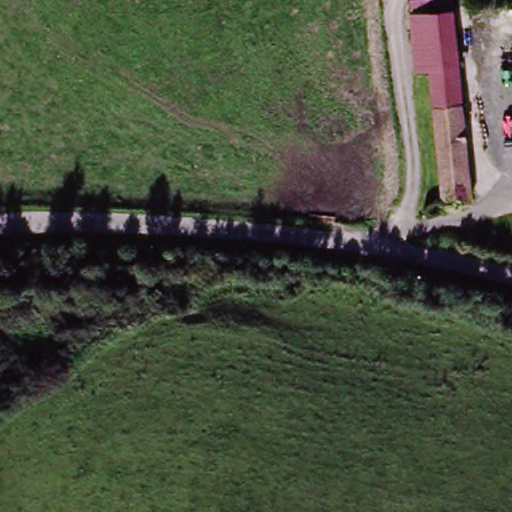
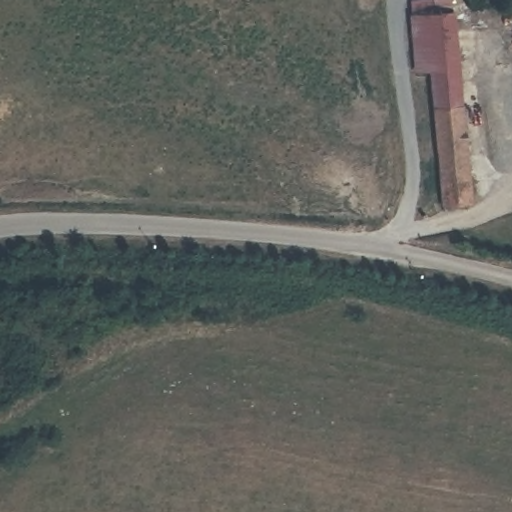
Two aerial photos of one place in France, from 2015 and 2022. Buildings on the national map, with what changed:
unchanged [(458,62),(415,65),(412,14),(411,0),(454,0),(455,11),(458,62)]
unchanged [(459,62),(468,204),(440,206),(433,108),(419,107),(415,65),(458,62),(459,62)]

